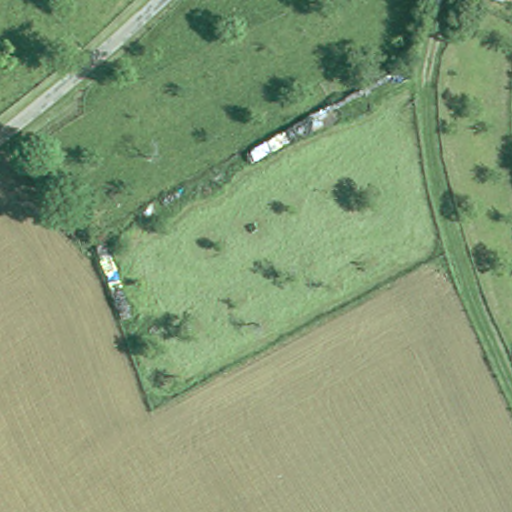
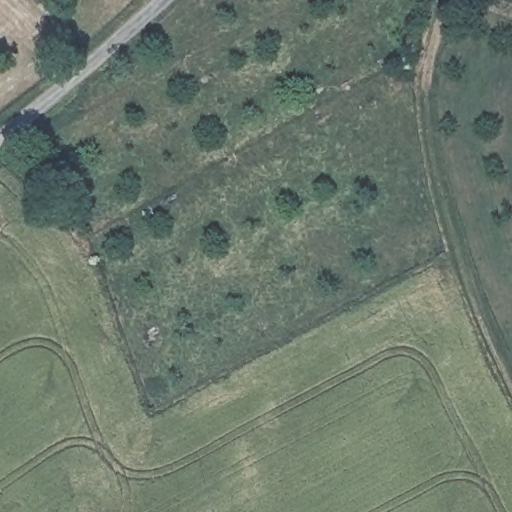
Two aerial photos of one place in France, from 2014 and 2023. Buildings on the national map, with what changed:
unchanged [(504,1),(502,0),(504,0),(504,1)]

